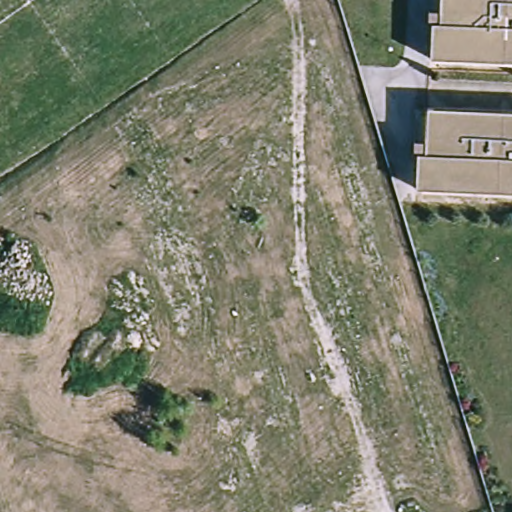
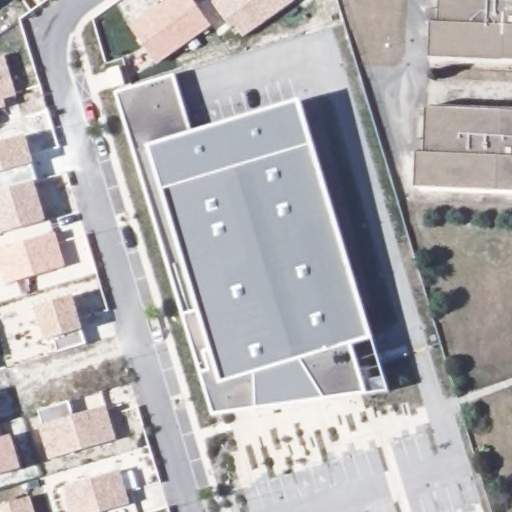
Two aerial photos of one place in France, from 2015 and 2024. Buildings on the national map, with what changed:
new [(157,66),(130,27),(168,0),(194,0),(213,26),(157,66)]
new [(216,0),(296,0),(243,37),(236,26),(231,29),(212,2),(216,0)]
unchanged [(427,60),(427,10),(437,10),(438,0),(512,0),(512,63),(427,60)]
new [(6,108),(0,110),(0,59),(5,56),(18,96),(5,100),(6,108)]
new [(118,66),(123,83),(113,86),(108,69),(118,66)]
new [(191,134),(299,102),(371,339),(351,345),(365,395),(214,415),(186,316),(118,94),(173,77),(191,134)]
unchanged [(424,142),(427,107),(512,111),(512,192),(415,190),(413,142),(424,142)]
new [(36,184),(47,220),(0,233),(0,144),(26,136),(35,164),(30,165),(36,184)]
new [(0,266),(0,251),(56,232),(67,267),(6,285),(0,266)]
new [(35,307),(73,296),(84,330),(83,331),(88,345),(56,354),(53,340),(45,342),(35,307)]
new [(365,395),(351,345),(371,339),(388,392),(365,395)]
new [(43,425),(38,411),(68,400),(73,415),(106,406),(117,439),(48,460),(38,426),(43,425)]
new [(22,469),(0,476),(0,439),(11,435),(22,469)]
new [(120,470),(131,503),(104,512),(71,512),(63,487),(120,470)]
new [(0,506),(31,497),(36,512),(0,512),(0,506)]

